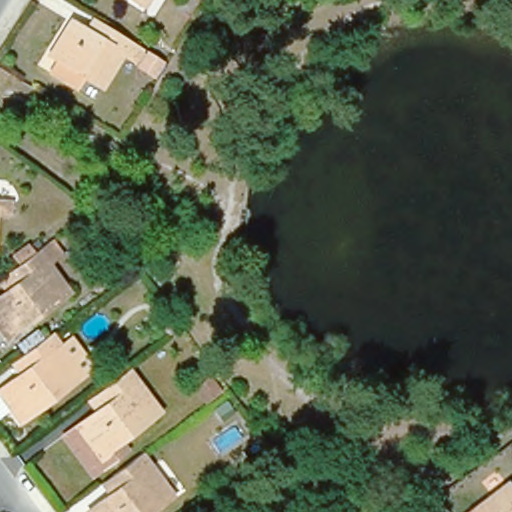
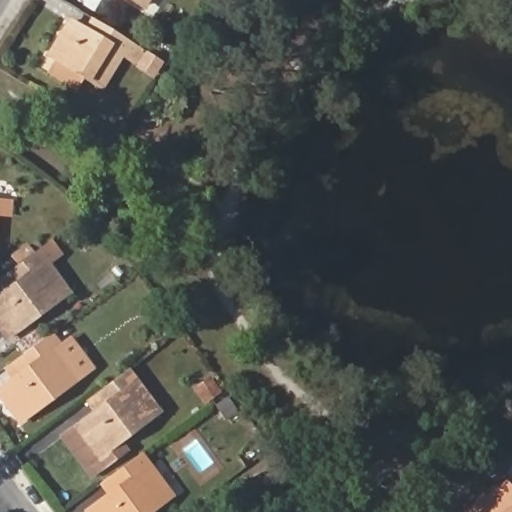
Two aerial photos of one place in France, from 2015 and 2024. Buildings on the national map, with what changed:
unchanged [(132,54),(122,47),(101,80),(44,46),(67,12),(80,20),(88,7),(107,20),(140,41),(132,54)]
unchanged [(0,203),(0,187),(7,187),(8,202),(0,203)]
unchanged [(0,320),(0,294),(30,271),(21,258),(43,241),(72,285),(9,331),(0,320)]
unchanged [(23,417),(2,388),(46,356),(35,343),(59,326),(88,368),(23,417)]
unchanged [(165,405),(102,452),(82,425),(110,403),(101,390),(112,382),(134,366),(165,405)]
unchanged [(171,490),(143,512),(83,512),(116,487),(106,473),(117,465),(141,447),(171,490)]
unchanged [(512,480),(512,512),(479,512),(472,501),(510,476),(512,480)]

